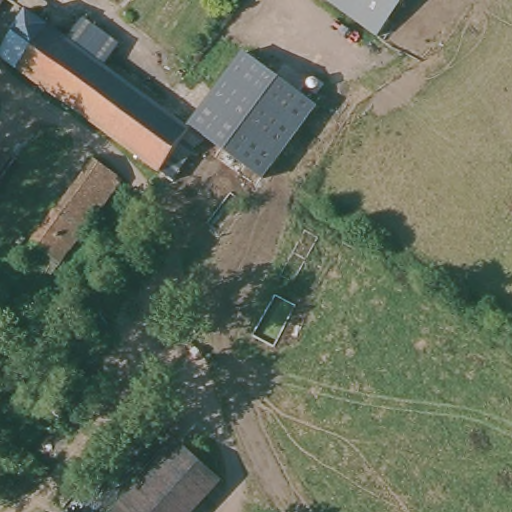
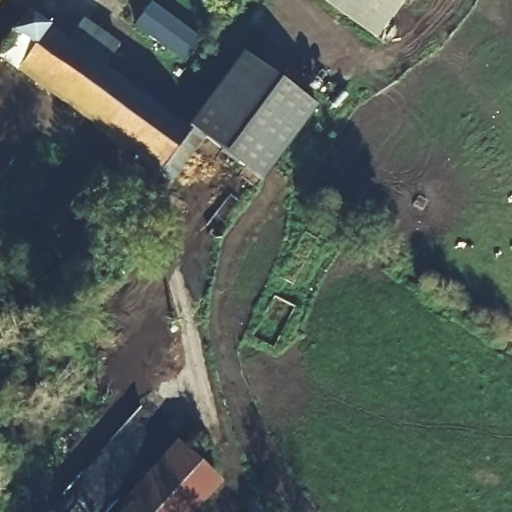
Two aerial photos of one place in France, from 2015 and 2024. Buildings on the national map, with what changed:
unchanged [(5,0),(3,2),(0,0),(5,0)]
unchanged [(378,39),(363,28),(326,0),(385,0),(406,0),(396,14),(393,18),(378,39)]
new [(200,39),(183,60),(135,25),(150,3),(200,39)]
unchanged [(190,134),(161,175),(1,58),(32,14),(190,134)]
unchanged [(318,108),(264,181),(190,126),(245,52),(318,108)]
unchanged [(16,166),(0,188),(0,155),(16,166)]
unchanged [(50,215),(49,214),(91,162),(130,190),(89,245),(84,241),(50,215)]
unchanged [(60,270),(27,245),(50,215),(84,241),(60,270)]
unchanged [(217,477),(184,512),(118,512),(181,445),(217,477)]

